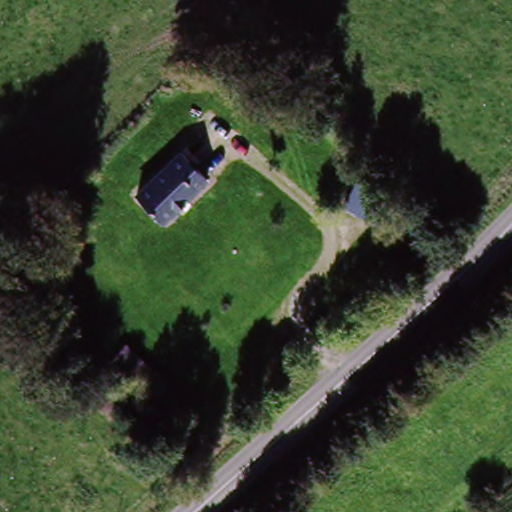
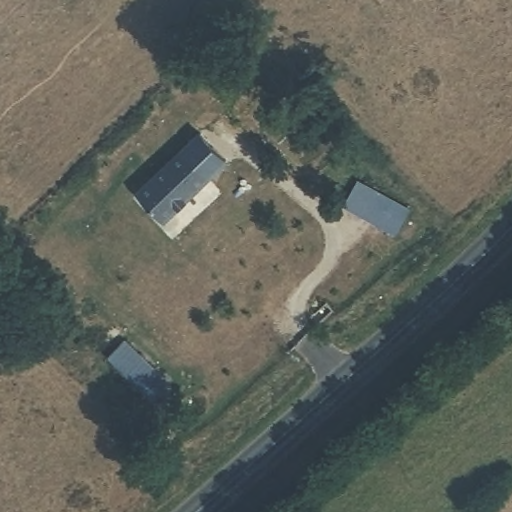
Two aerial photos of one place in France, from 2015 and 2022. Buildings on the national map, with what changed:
unchanged [(143,199),(186,150),(215,174),(172,224),(143,199)]
new [(409,212),(397,237),(345,207),(357,185),(409,212)]
unchanged [(114,373),(70,336),(86,317),(130,354),(114,373)]

